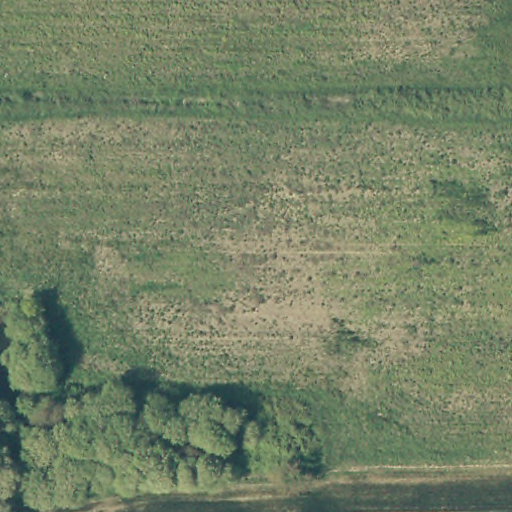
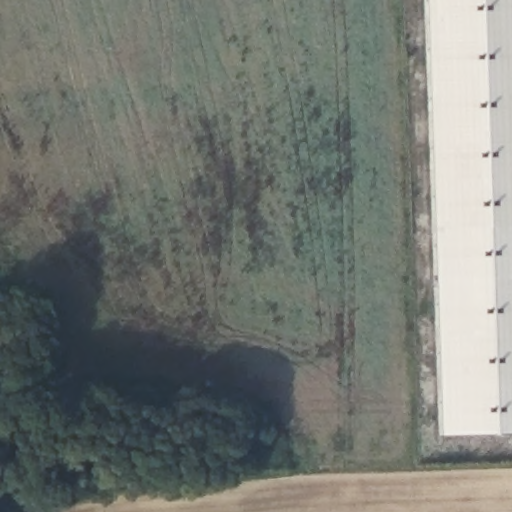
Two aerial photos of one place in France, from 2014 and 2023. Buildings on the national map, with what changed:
new [(443,437),(427,0),(512,0),(512,433),(443,437)]
demolished [(510,234),(508,185),(512,184),(512,234),(510,234)]

